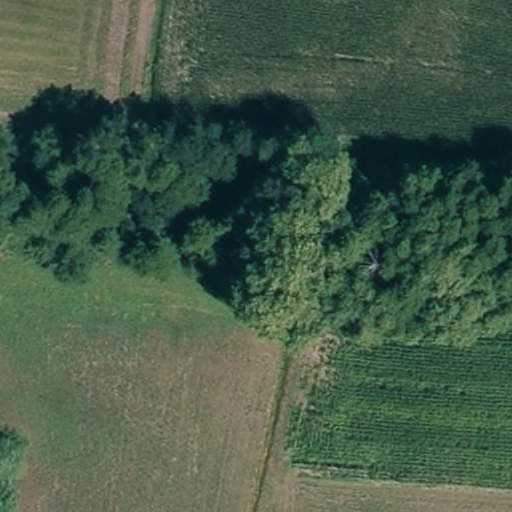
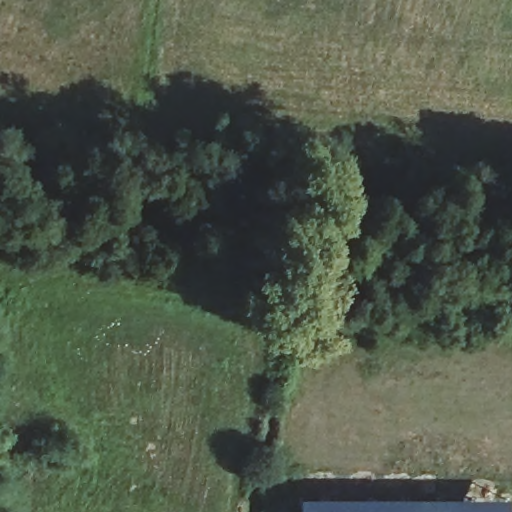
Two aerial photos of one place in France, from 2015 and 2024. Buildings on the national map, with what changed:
new [(503,497),(503,512),(299,512),(298,496),(503,497)]

